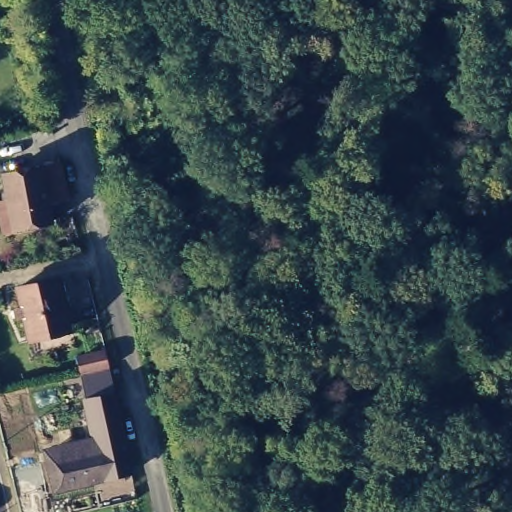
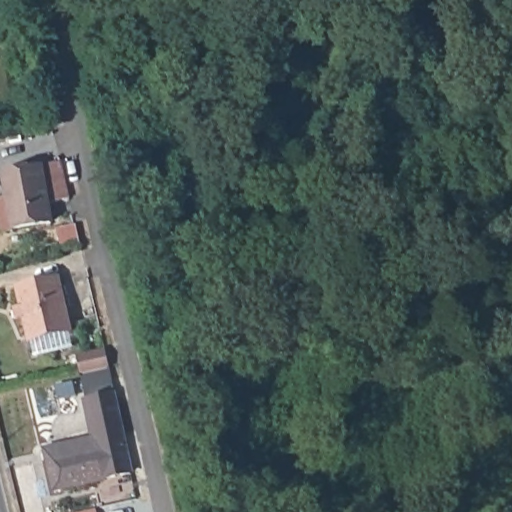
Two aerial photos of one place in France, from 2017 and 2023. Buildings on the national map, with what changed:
unchanged [(12,225),(0,173),(37,165),(49,217),(12,225)]
unchanged [(29,336),(16,290),(52,281),(67,325),(29,336)]
unchanged [(66,368),(65,352),(89,345),(92,363),(66,368)]
unchanged [(96,446),(100,465),(57,475),(50,449),(59,437),(90,429),(92,417),(121,408),(127,438),(96,446)]

